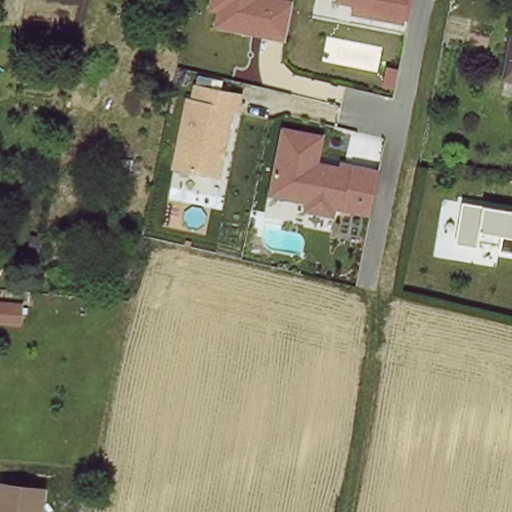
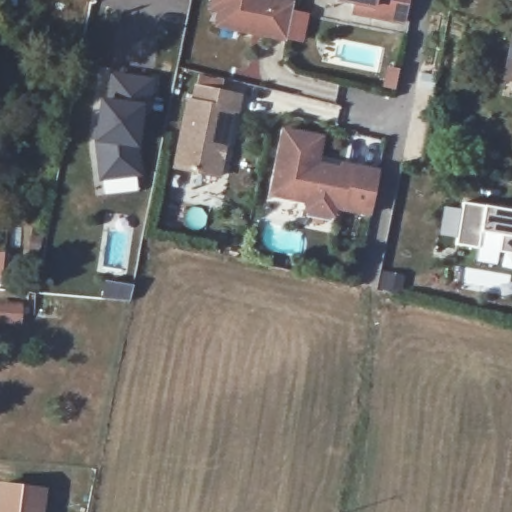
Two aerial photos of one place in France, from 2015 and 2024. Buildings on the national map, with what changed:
unchanged [(219,13),(209,11),(211,0),(293,0),(286,42),(216,28),(219,13)]
unchanged [(358,4),(336,1),(336,0),(411,0),(406,24),(354,15),(358,4)]
unchanged [(505,76),(512,37),(512,77),(505,76)]
new [(98,163),(95,139),(101,101),(108,102),(112,75),(150,80),(146,108),(139,107),(134,145),(137,174),(115,176),(100,178),(98,163)]
unchanged [(170,169),(187,98),(194,99),(197,84),(244,93),(240,115),(233,114),(221,181),(170,169)]
unchanged [(337,212),(335,219),(305,213),(306,204),(269,197),(283,128),(324,136),(318,164),(341,168),(342,162),(382,170),(372,217),(337,212)]
unchanged [(500,253),(503,236),(482,233),(478,248),(457,244),(463,203),(484,206),(512,210),(512,254),(500,253)]
unchanged [(0,481),(44,487),(40,512),(0,512),(0,481)]

